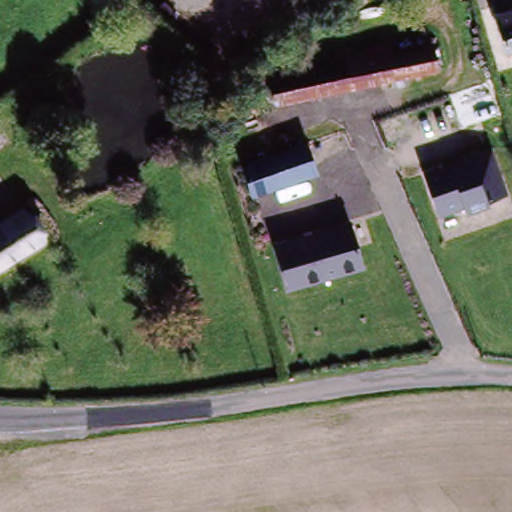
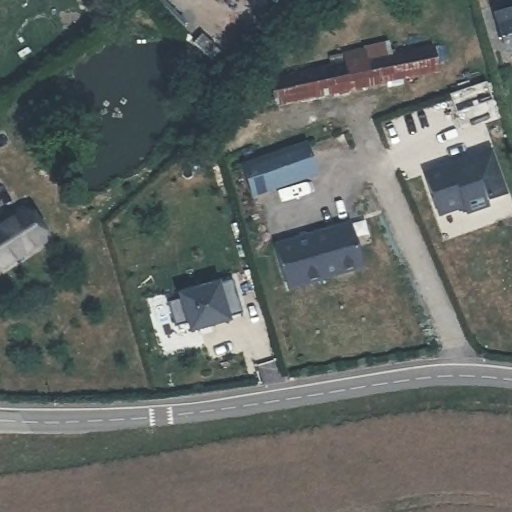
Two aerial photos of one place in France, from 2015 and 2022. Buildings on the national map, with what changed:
unchanged [(504,54),(494,15),(512,10),(512,51),(504,54)]
unchanged [(381,45),(383,56),(427,46),(432,72),(277,109),(271,82),(338,66),(335,55),(381,45)]
unchanged [(317,180),(251,199),(243,162),(307,144),(317,180)]
unchanged [(507,195),(485,201),(489,210),(467,216),(464,209),(437,219),(421,174),(492,150),(507,195)]
unchanged [(0,257),(0,223),(23,206),(46,239),(28,252),(20,241),(0,257)]
unchanged [(350,225),(362,269),(286,292),(274,244),(350,225)]
unchanged [(28,252),(0,273),(0,257),(20,241),(28,252)]
new [(181,301),(179,297),(232,281),(242,315),(227,320),(228,322),(190,333),(188,325),(174,330),(167,305),(181,301)]

